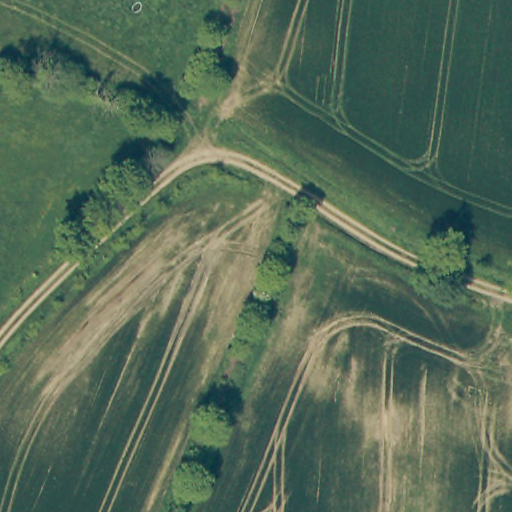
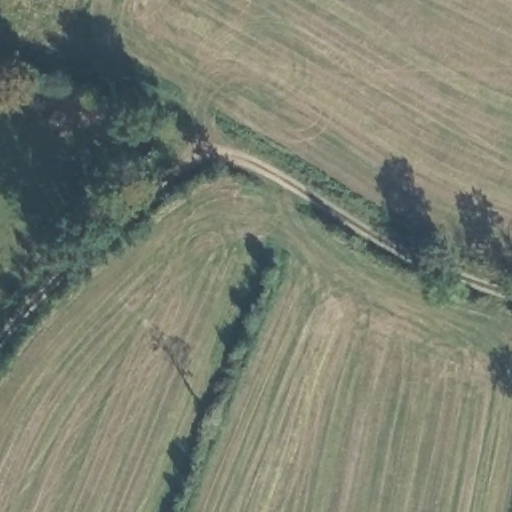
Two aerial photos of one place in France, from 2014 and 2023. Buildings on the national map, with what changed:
[]

